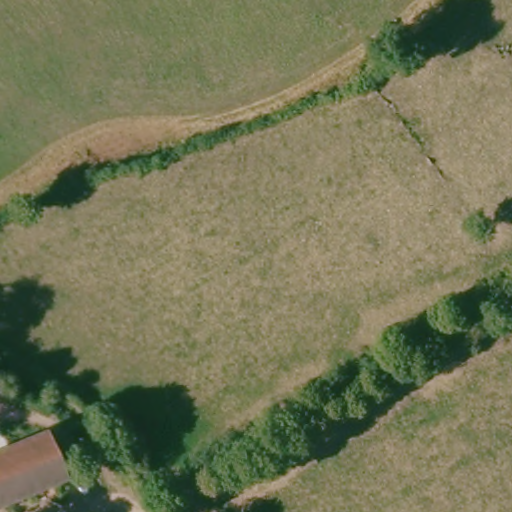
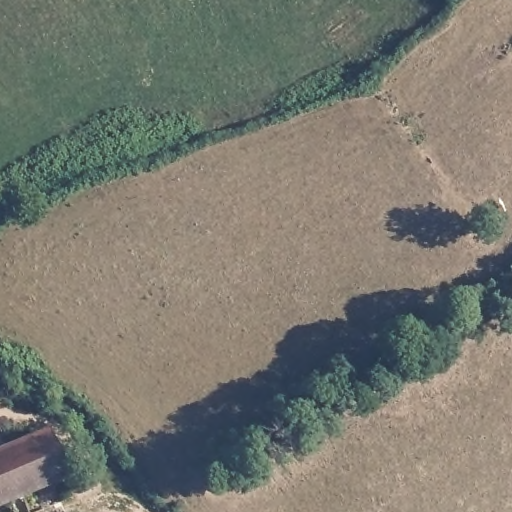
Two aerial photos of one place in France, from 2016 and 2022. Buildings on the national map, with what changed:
unchanged [(71,504),(28,512),(0,512),(0,463),(64,452),(71,504)]

